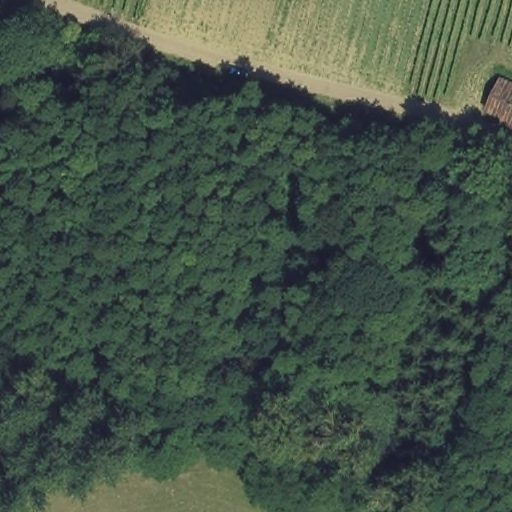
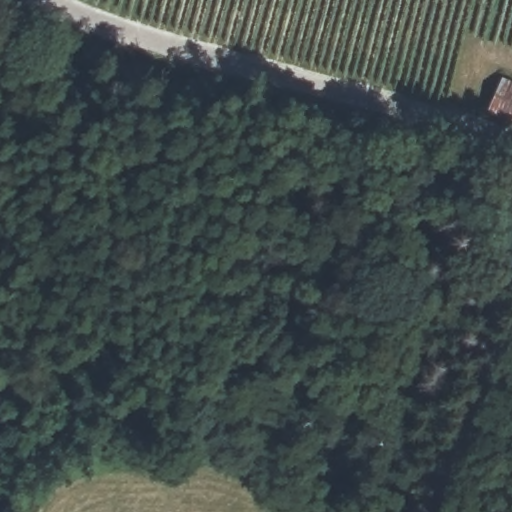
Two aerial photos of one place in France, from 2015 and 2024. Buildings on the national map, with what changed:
unchanged [(483,106),(500,70),(512,76),(512,120),(483,106)]

